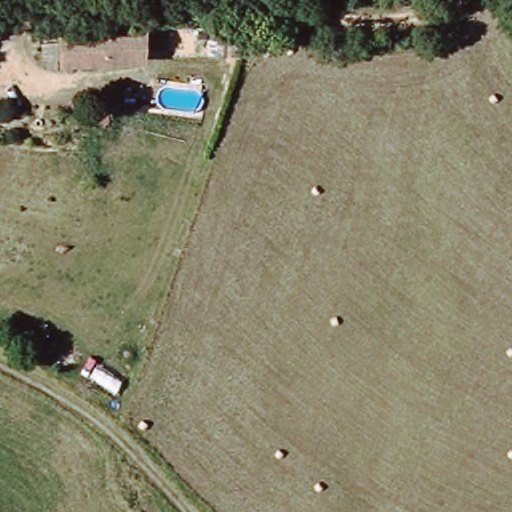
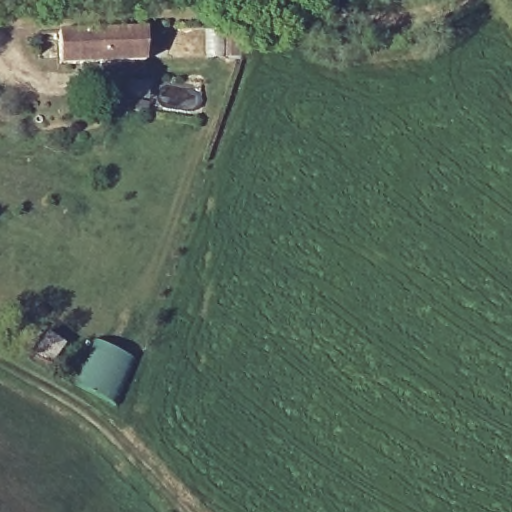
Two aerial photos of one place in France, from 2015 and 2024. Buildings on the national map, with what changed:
unchanged [(145,64),(59,63),(57,36),(92,27),(145,27),(145,64)]
new [(108,400),(80,387),(100,344),(128,357),(108,400)]

